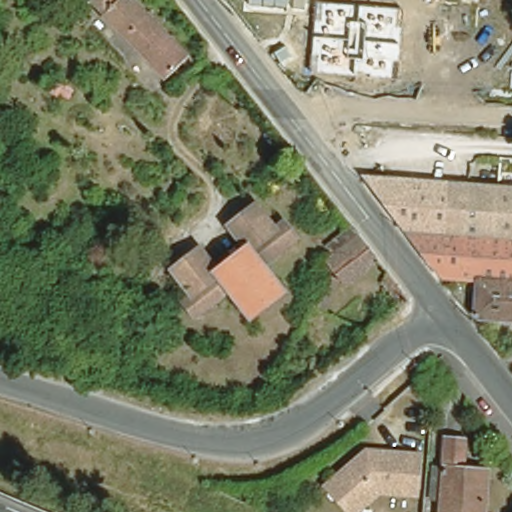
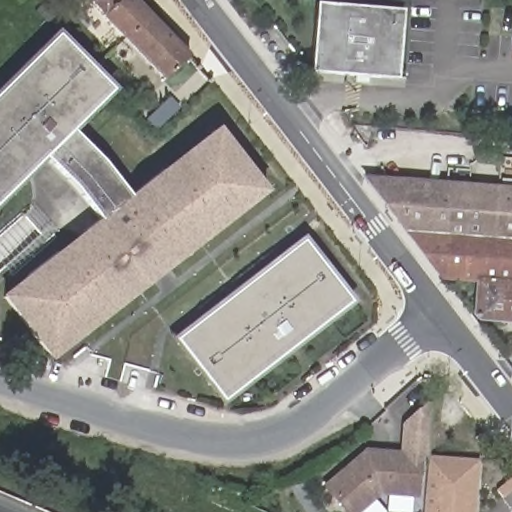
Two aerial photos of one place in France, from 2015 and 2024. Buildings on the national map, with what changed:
unchanged [(103,16),(90,3),(94,0),(133,0),(187,57),(162,81),(102,19),(103,16)]
demolished [(295,36),(299,0),(315,0),(331,1),(330,14),(384,18),(382,48),(363,46),(363,54),(310,49),(310,38),(295,36)]
demolished [(389,19),(391,0),(432,0),(430,23),(389,19)]
new [(311,71),(316,2),(403,9),(398,78),(311,71)]
new [(44,158),(0,201),(0,91),(58,33),(113,89),(72,130),(44,158)]
demolished [(71,97),(63,89),(70,83),(78,90),(71,97)]
new [(51,361),(0,296),(100,218),(130,195),(218,126),(269,191),(51,361)]
new [(73,186),(44,158),(72,130),(103,160),(130,195),(100,218),(73,186)]
unchanged [(475,282),(474,282),(442,280),(362,178),(512,187),(512,285),(475,282)]
demolished [(231,290),(197,319),(185,303),(196,294),(176,270),(199,251),(219,275),(245,253),(239,246),(244,243),(229,223),(257,200),(275,225),(284,217),(296,234),(262,263),(283,290),(251,316),(231,290)]
demolished [(323,242),(346,225),(352,233),(330,251),(323,242)]
new [(223,406),(171,338),(304,233),(357,301),(223,406)]
unchanged [(475,282),(512,285),(512,323),(477,320),(472,314),(474,282),(475,282)]
new [(402,423),(432,399),(428,457),(419,457),(419,453),(415,453),(401,452),(402,423)]
demolished [(484,512),(439,512),(444,441),(464,444),(462,469),(459,469),(458,484),(486,486),(484,512)]
unchanged [(361,451),(401,452),(415,453),(419,453),(419,457),(417,476),(416,492),(414,492),(375,490),(348,512),(346,512),(322,481),(361,451)]
new [(427,457),(427,455),(479,459),(475,512),(423,512),(427,457)]

